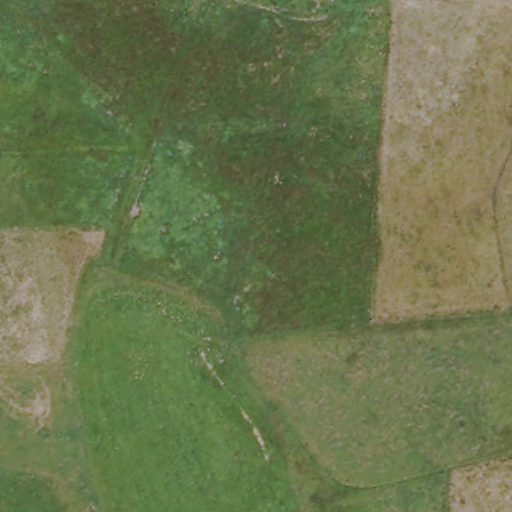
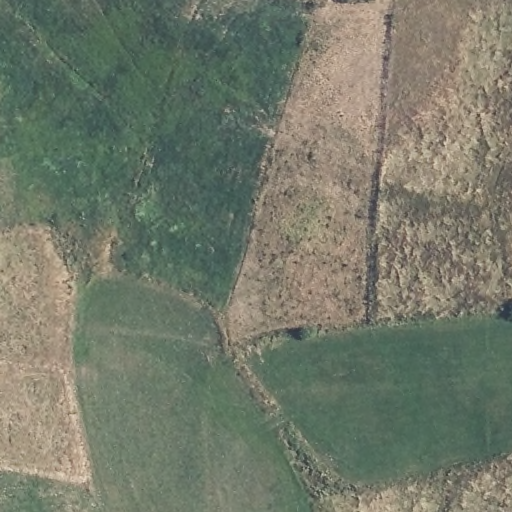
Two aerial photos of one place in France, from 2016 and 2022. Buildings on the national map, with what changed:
[]

